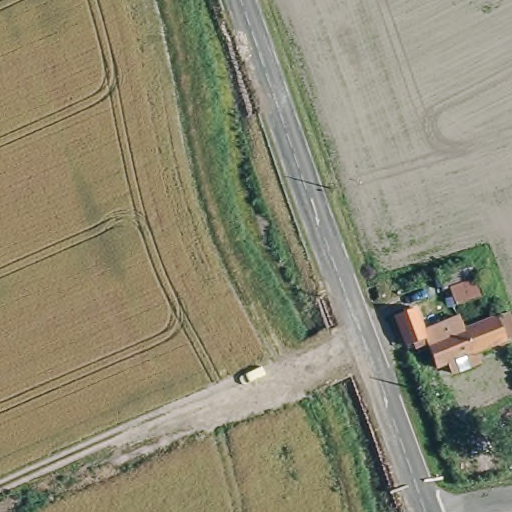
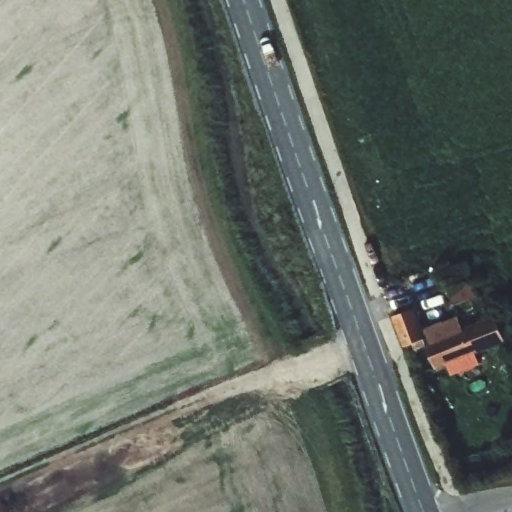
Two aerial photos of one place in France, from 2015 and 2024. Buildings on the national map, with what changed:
unchanged [(404,348),(394,321),(413,314),(422,340),(404,348)]
unchanged [(428,350),(512,317),(512,342),(435,370),(428,350)]

